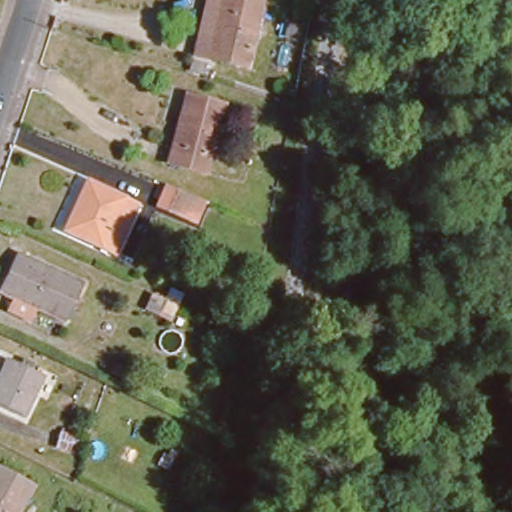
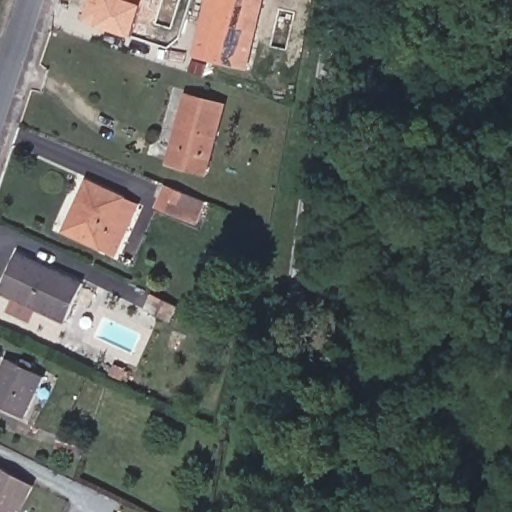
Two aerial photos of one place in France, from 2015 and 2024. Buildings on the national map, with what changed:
new [(85,21),(92,0),(147,0),(146,4),(135,37),(97,26),(85,21)]
unchanged [(220,39),(217,59),(196,53),(207,0),(220,0),(215,39),(220,39)]
unchanged [(217,59),(220,39),(215,39),(220,0),(257,0),(244,66),(217,59)]
unchanged [(221,109),(202,174),(171,163),(176,145),(172,141),(185,98),(221,109)]
unchanged [(62,224),(83,178),(116,194),(132,202),(121,225),(111,246),(62,224)]
unchanged [(196,221),(157,202),(169,181),(206,198),(196,221)]
unchanged [(58,314),(0,287),(0,278),(14,244),(75,273),(58,314)]
unchanged [(166,334),(140,322),(149,305),(172,318),(166,334)]
unchanged [(20,415),(0,403),(0,364),(5,355),(41,374),(20,415)]
unchanged [(14,512),(0,512),(0,469),(29,483),(14,512)]

